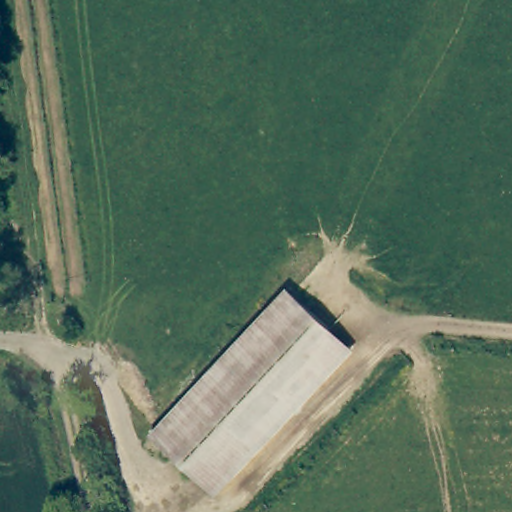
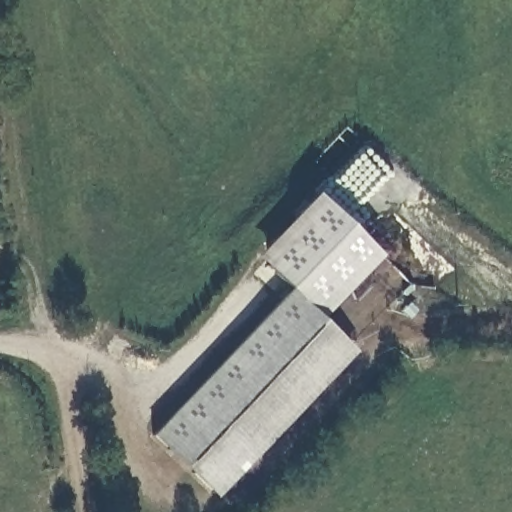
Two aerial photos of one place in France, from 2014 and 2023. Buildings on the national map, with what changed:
new [(314,190),(379,254),(320,317),(285,286),(254,256),(314,190)]
unchanged [(212,491),(152,435),(290,288),(350,346),(212,491)]

